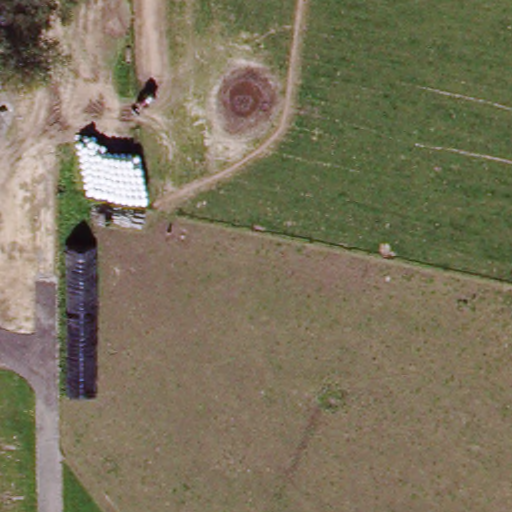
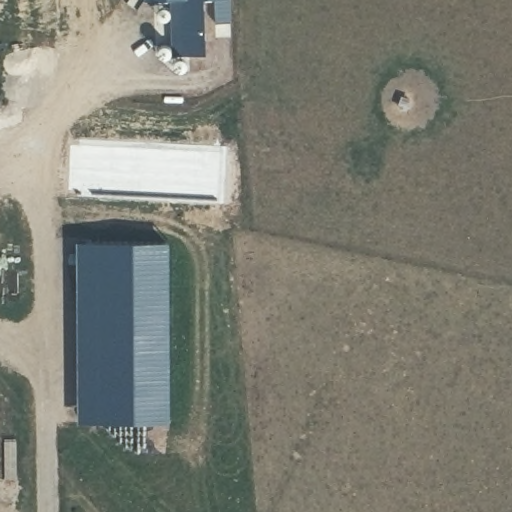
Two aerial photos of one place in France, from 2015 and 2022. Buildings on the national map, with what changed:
new [(206,41),(173,43),(171,0),(204,0),(206,41)]
new [(230,15),(218,16),(217,0),(230,0),(230,15)]
new [(100,419),(77,421),(75,239),(99,238),(100,419)]
new [(168,238),(170,421),(100,422),(99,238),(168,238)]

